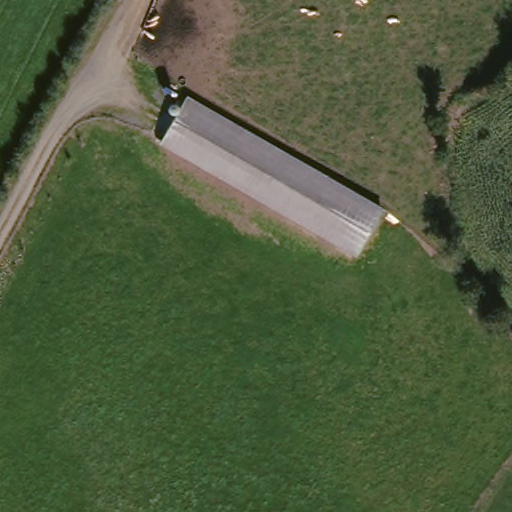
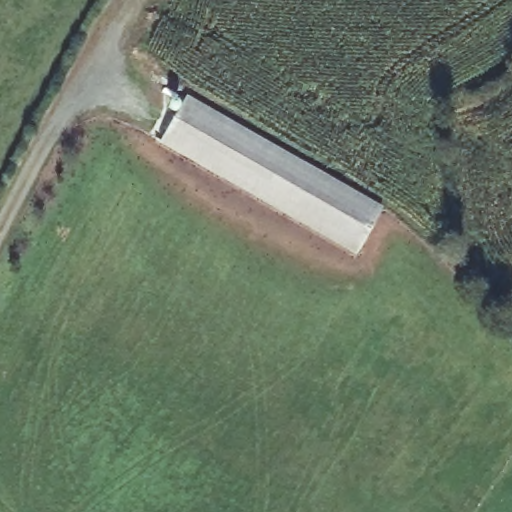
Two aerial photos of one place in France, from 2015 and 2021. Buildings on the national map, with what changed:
unchanged [(366,251),(161,139),(184,95),(389,207),(366,251)]

